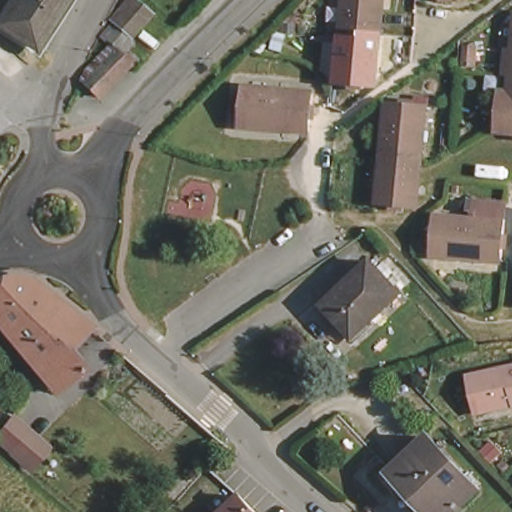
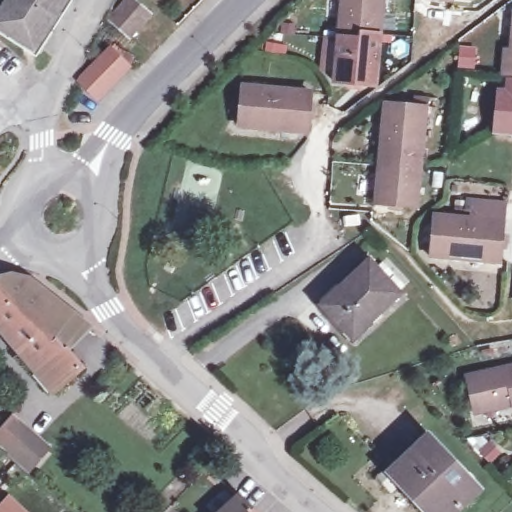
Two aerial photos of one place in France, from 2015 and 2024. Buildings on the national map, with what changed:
unchanged [(0,35),(0,21),(13,0),(67,0),(67,1),(45,35),(32,56),(10,41),(0,35)]
unchanged [(346,0),(383,0),(375,87),(338,83),(346,0)]
unchanged [(154,19),(130,40),(119,26),(139,3),(154,19)]
unchanged [(500,91),(506,89),(512,50),(512,133),(497,132),(500,91)]
unchanged [(85,86),(115,57),(117,60),(122,54),(135,66),(132,71),(100,105),(85,86)]
unchanged [(242,127),(245,88),(312,96),(311,135),(242,127)]
unchanged [(390,106),(427,110),(422,166),(419,209),(382,206),(390,106)]
unchanged [(509,212),(507,227),(503,266),(437,260),(433,259),(437,220),(442,220),(477,224),(479,205),(510,208),(509,212)]
unchanged [(357,338),(327,310),(373,264),(401,295),(357,338)]
unchanged [(30,291),(90,340),(67,366),(74,373),(58,388),(0,331),(0,281),(1,281),(7,281),(10,281),(15,282),(21,284),(25,287),(30,291)]
unchanged [(470,376),(512,363),(512,406),(481,416),(478,406),(470,376)]
unchanged [(17,419),(30,431),(45,443),(52,450),(35,469),(0,439),(17,419)]
unchanged [(456,512),(437,512),(397,468),(433,435),(482,488),(456,512)]
unchanged [(245,489),(267,512),(221,512),(245,489)]
new [(10,494),(29,512),(0,512),(0,505),(10,494)]

